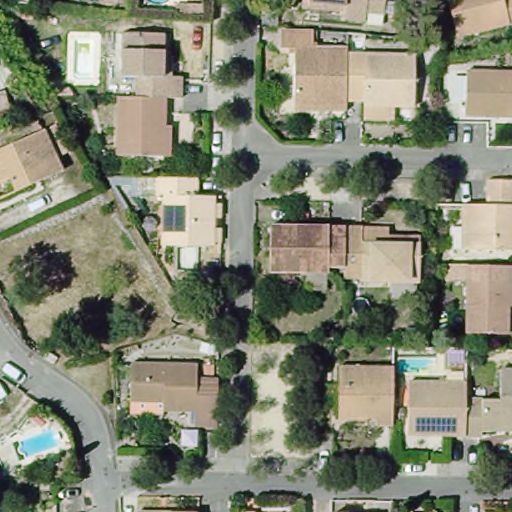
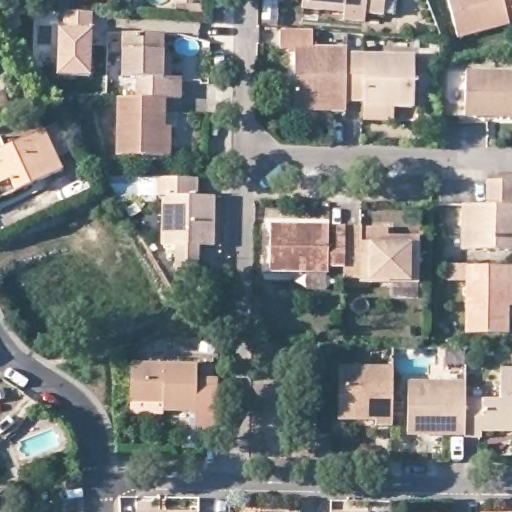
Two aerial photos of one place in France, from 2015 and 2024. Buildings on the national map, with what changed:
unchanged [(118,0),(118,1),(104,0),(118,0)]
unchanged [(367,23),(344,21),(344,13),(303,9),(303,0),(386,0),(385,16),(368,14),(367,23)]
unchanged [(450,0),(512,0),(512,24),(461,38),(450,0)]
new [(57,76),(57,28),(65,28),(65,11),(93,11),(90,77),(57,76)]
unchanged [(300,106),(301,50),(287,50),(287,31),(317,31),(317,50),(352,50),(352,74),(351,100),(351,112),(336,112),(300,111),(300,106)]
unchanged [(172,77),(182,78),(182,98),(165,98),(137,97),(137,79),(122,77),(124,35),(164,36),(164,56),(172,57),(172,77)]
unchanged [(370,119),(370,106),(371,101),(351,100),(352,74),(371,75),(371,56),(421,56),(420,107),(394,106),(393,119),(370,119)]
unchanged [(468,71),(512,72),(512,118),(468,116),(468,71)]
unchanged [(173,158),(163,158),(118,156),(119,96),(137,97),(165,98),(165,126),(173,126),(173,158)]
unchanged [(14,191),(9,180),(0,184),(0,149),(45,130),(63,169),(14,191)]
unchanged [(215,198),(215,247),(208,247),(172,247),(163,246),(164,197),(156,197),(156,178),(198,179),(199,197),(215,198)]
unchanged [(512,181),(512,251),(470,251),(471,204),(495,205),(495,181),(512,181)]
unchanged [(310,275),(276,274),(277,227),(306,228),(335,228),(350,228),(349,269),(334,269),(332,276),(310,275)]
unchanged [(366,284),(365,280),(349,279),(349,269),(350,228),(368,229),(395,229),(396,238),(426,239),(426,245),(426,284),(366,284)]
unchanged [(474,266),(512,266),(512,334),(474,334),(474,266)]
unchanged [(377,428),(376,422),(340,421),(340,367),(393,368),(392,429),(377,428)]
unchanged [(131,407),(131,369),(198,370),(199,384),(219,384),(219,432),(195,432),(196,418),(163,417),(163,415),(131,415),(131,407)]
unchanged [(482,440),(466,440),(466,438),(467,400),(501,400),(502,370),(512,371),(512,434),(483,434),(482,440)]
unchanged [(409,437),(410,382),(467,384),(467,400),(466,438),(450,437),(430,437),(409,437)]

